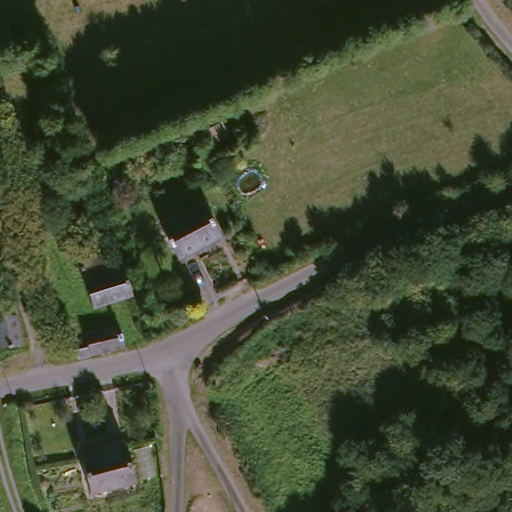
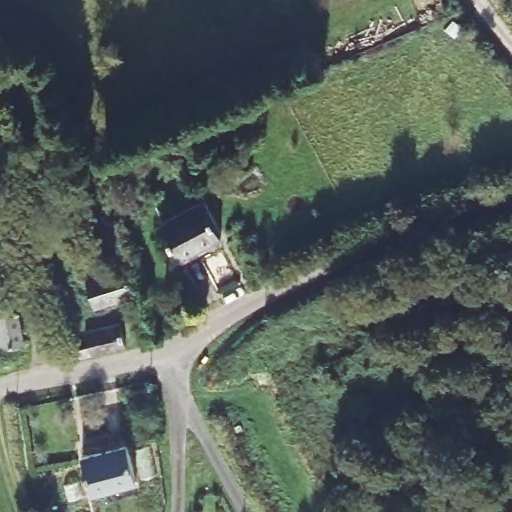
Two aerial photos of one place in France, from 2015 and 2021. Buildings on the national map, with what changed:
unchanged [(216,140),(194,148),(188,134),(209,124),(216,140)]
unchanged [(177,266),(161,229),(203,210),(220,247),(177,266)]
unchanged [(112,277),(125,273),(133,299),(94,311),(81,268),(107,260),(112,277)]
unchanged [(0,321),(7,320),(12,320),(18,349),(14,350),(0,350),(0,321)]
unchanged [(114,328),(121,349),(86,359),(84,351),(81,338),(114,328)]
unchanged [(126,444),(138,479),(95,493),(83,458),(126,444)]

